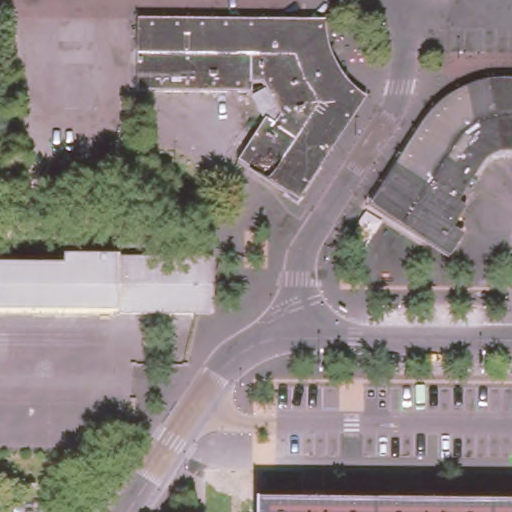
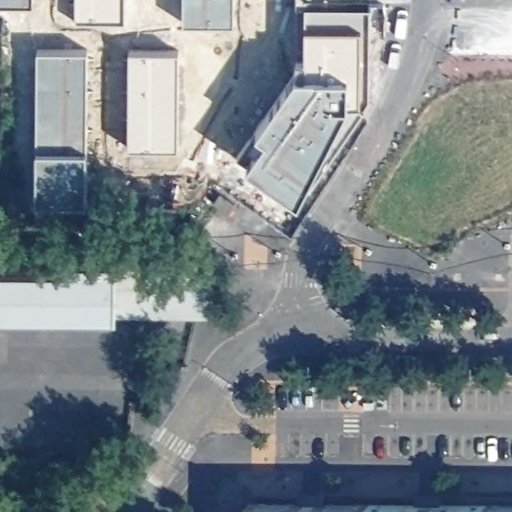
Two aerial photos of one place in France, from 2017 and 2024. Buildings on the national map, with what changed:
new [(76,19),(76,0),(123,0),(123,19),(76,19)]
new [(183,19),(183,0),(234,0),(233,20),(183,19)]
new [(369,93),(363,103),(309,178),(298,197),(247,160),(250,156),(238,154),(255,127),(295,71),(296,55),(298,2),(295,1),(296,0),(371,0),(370,2),(369,93)]
demolished [(315,47),(319,59),(324,71),(331,81),(340,91),(350,99),(285,195),(235,163),(263,121),(248,96),(135,93),(136,33),(313,34),(315,47)]
new [(87,146),(85,200),(35,200),(36,147),(37,47),(86,48),(87,146)]
new [(176,145),(128,144),(129,49),(177,49),(176,145)]
demolished [(505,154),(497,157),(490,162),(485,167),(480,173),(458,203),(467,209),(455,228),(447,239),(388,200),(423,146),(429,137),(435,129),(442,121),(452,113),(462,106),(473,100),(485,96),(497,93),(512,93),(512,153),(509,153),(505,154)]
unchanged [(66,267),(66,258),(120,259),(119,313),(0,313),(0,267),(66,267)]
unchanged [(119,313),(120,259),(197,260),(196,314),(119,313)]
unchanged [(217,260),(216,314),(196,314),(197,260),(217,260)]
unchanged [(305,503),(306,496),(327,497),(327,503),(421,504),(422,496),(444,496),(444,504),(512,505),(512,512),(255,512),(255,501),(260,501),(259,502),(305,503)]

